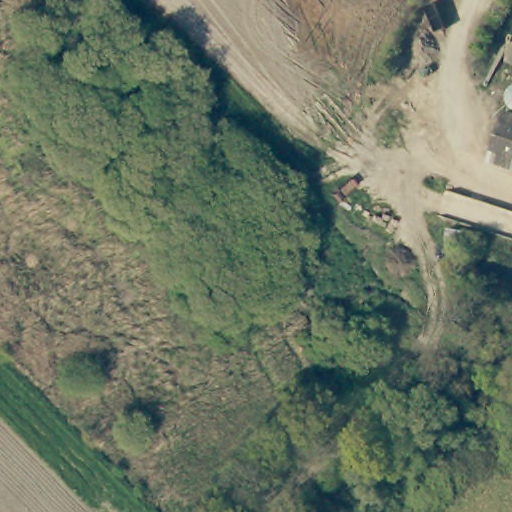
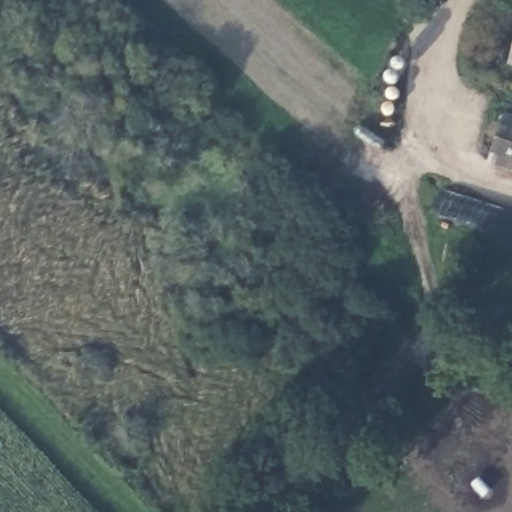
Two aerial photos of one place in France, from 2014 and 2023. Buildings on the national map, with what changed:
unchanged [(490,151),(505,103),(512,105),(512,160),(490,151)]

